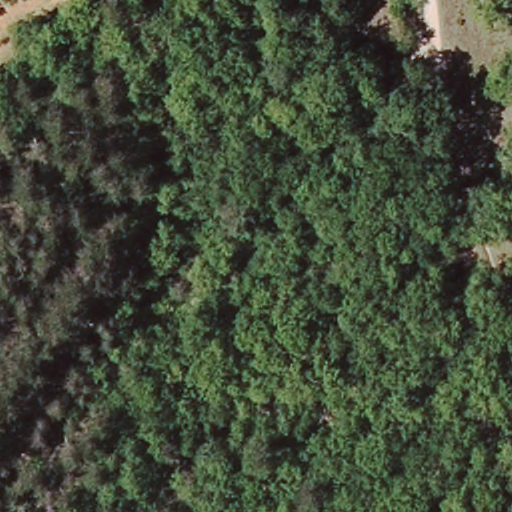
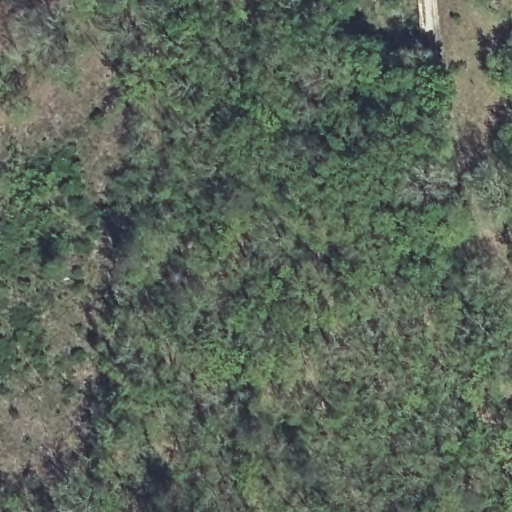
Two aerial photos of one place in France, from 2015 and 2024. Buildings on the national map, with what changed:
[]

